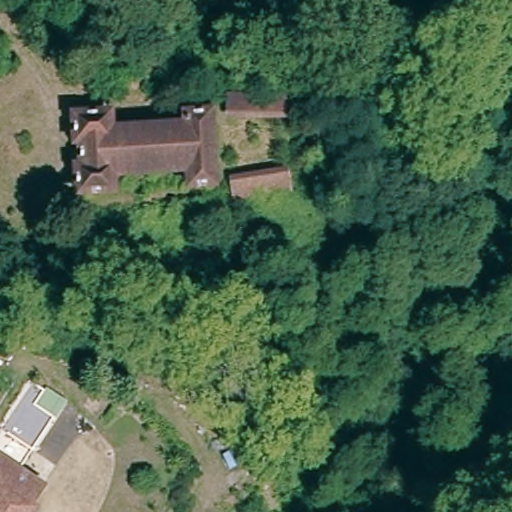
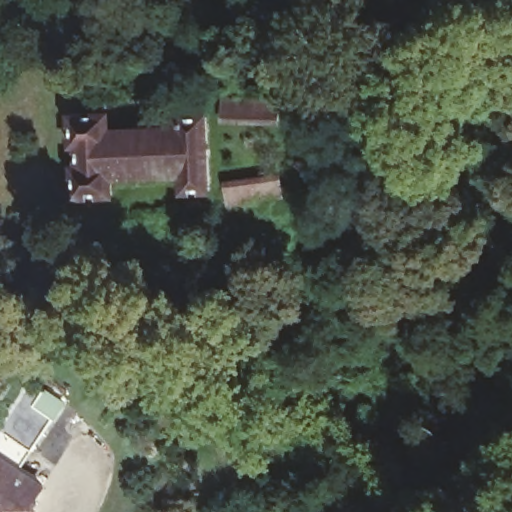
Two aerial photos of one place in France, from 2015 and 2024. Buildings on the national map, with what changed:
unchanged [(230,99),(288,96),(287,124),(228,122),(230,99)]
unchanged [(209,119),(212,189),(187,190),(187,174),(111,177),(111,195),(78,197),(78,170),(82,170),(81,142),(76,142),(76,119),(108,117),(108,132),(183,130),(183,120),(209,119)]
unchanged [(296,203),(240,210),(234,182),(291,173),(296,203)]
unchanged [(32,512),(0,512),(0,463),(4,457),(12,446),(24,430),(46,446),(34,462),(28,470),(23,477),(43,492),(30,510),(32,512)]

